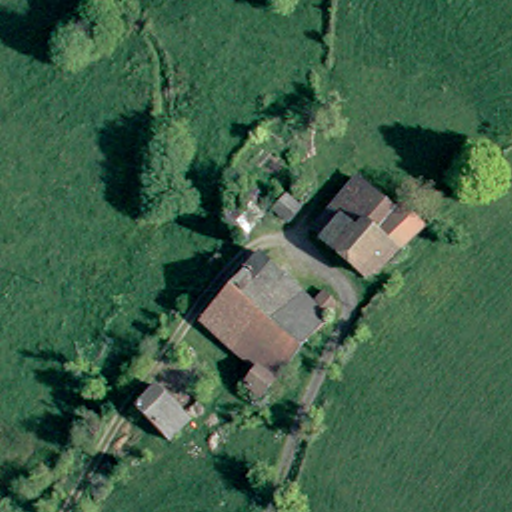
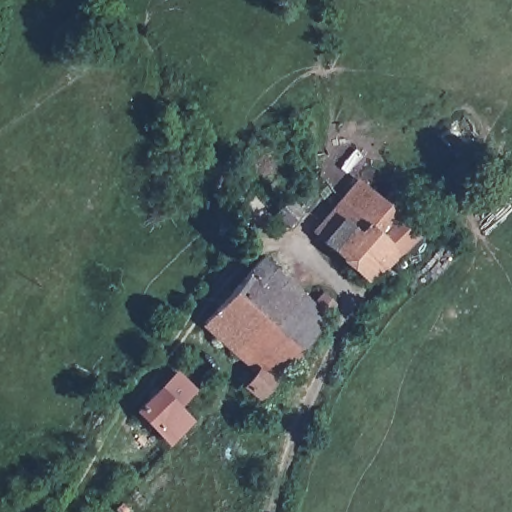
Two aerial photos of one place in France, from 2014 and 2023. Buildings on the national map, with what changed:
unchanged [(367,280),(308,236),(355,182),(392,202),(427,229),(367,280)]
unchanged [(297,225),(280,216),(290,200),(305,209),(297,225)]
unchanged [(262,401),(248,390),(259,376),(200,325),(263,258),(312,301),(322,291),(336,304),(333,313),(330,317),(320,330),(262,401)]
unchanged [(212,379),(161,431),(140,411),(194,362),(212,379)]
unchanged [(225,391),(175,444),(161,431),(212,379),(225,391)]

